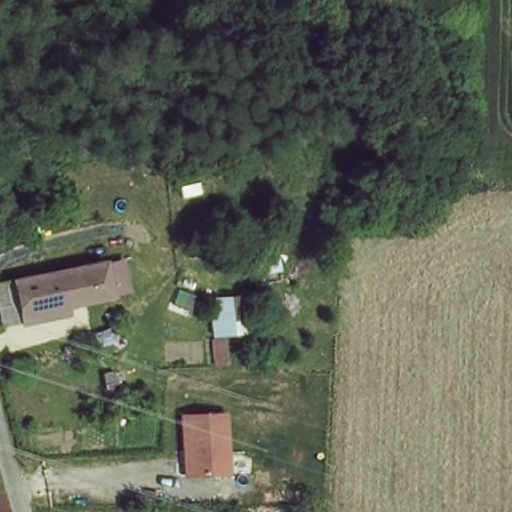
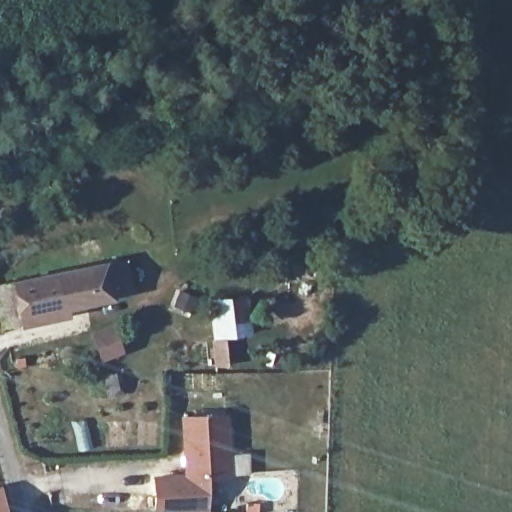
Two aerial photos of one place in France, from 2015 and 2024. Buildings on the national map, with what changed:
unchanged [(21,326),(0,330),(0,283),(106,260),(116,296),(70,308),(71,321),(22,331),(21,326)]
unchanged [(211,342),(226,341),(228,363),(213,363),(211,342)]
unchanged [(231,475),(183,477),(179,415),(228,413),(231,475)]
new [(183,477),(211,476),(208,512),(155,511),(153,474),(183,472),(183,477)]
unchanged [(0,488),(6,512),(0,512),(0,488)]

